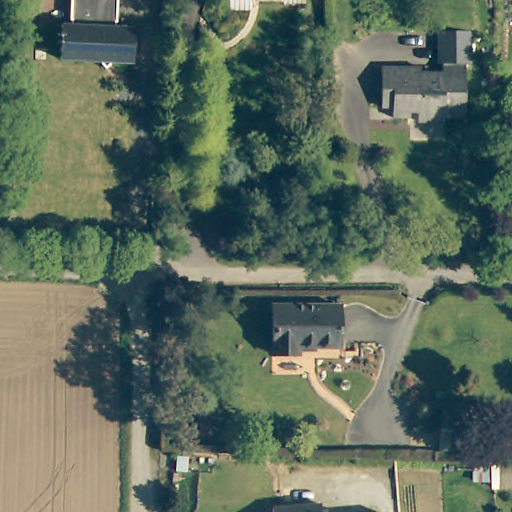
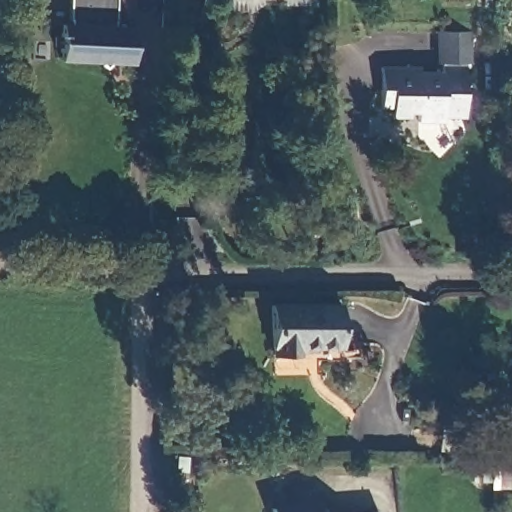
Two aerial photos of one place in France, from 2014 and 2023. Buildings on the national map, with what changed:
unchanged [(126,70),(115,81),(104,68),(66,67),(65,30),(75,30),(77,0),(125,0),(124,34),(143,34),(142,70),(126,70)]
unchanged [(389,102),(381,102),(382,61),(443,67),(442,22),(473,24),(471,58),(465,58),(466,74),(464,110),(445,109),(445,117),(415,116),(416,107),(404,107),(404,114),(389,114),(389,102)]
unchanged [(268,350),(268,301),(336,301),(338,344),(342,343),(343,357),(294,357),(294,351),(268,350)]
unchanged [(512,490),(511,490),(511,471),(512,471),(512,490)]
unchanged [(322,505),(323,512),(275,512),(274,508),(322,505)]

